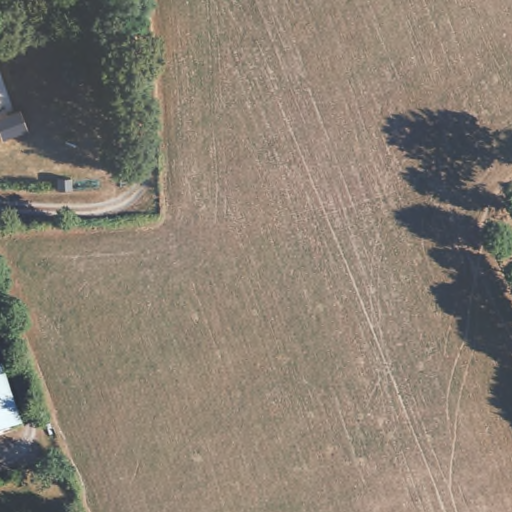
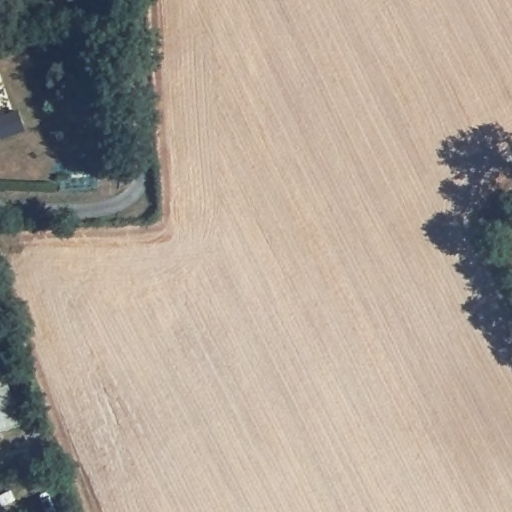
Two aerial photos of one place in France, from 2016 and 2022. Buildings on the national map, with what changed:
unchanged [(20,426),(0,432),(0,369),(20,426)]

